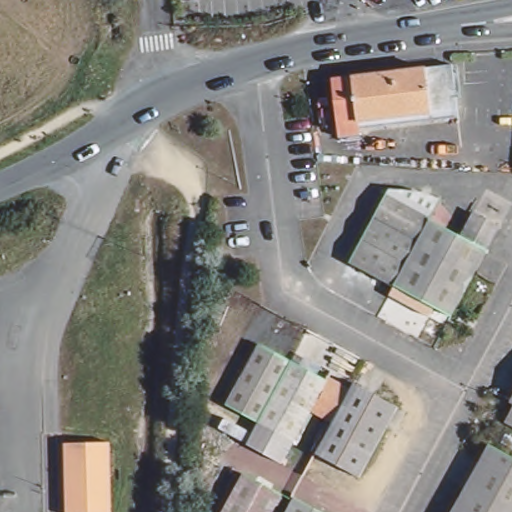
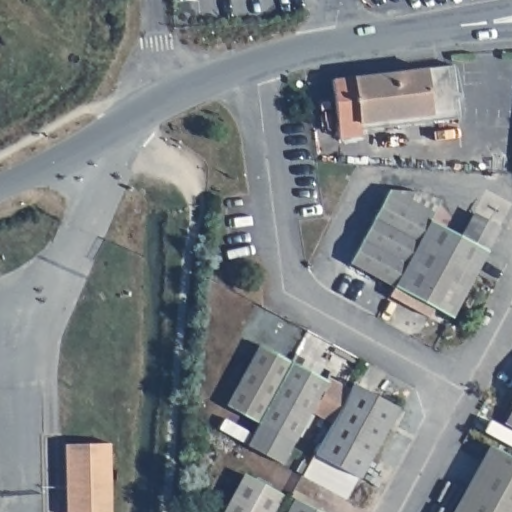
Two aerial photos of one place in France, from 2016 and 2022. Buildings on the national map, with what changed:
unchanged [(461,113),(418,120),(362,130),(364,141),(342,145),(339,126),(332,87),(452,66),(461,113)]
unchanged [(348,265),(373,220),(385,199),(429,222),(417,244),(392,289),(348,265)]
unchanged [(392,289),(417,244),(429,222),(460,239),(472,217),(498,231),(486,253),(450,320),(392,289)]
unchanged [(263,354),(295,370),(291,377),(263,429),(232,413),(263,354)]
unchanged [(345,414),(337,429),(315,417),(297,448),(263,429),(291,377),(295,370),(296,368),(330,386),(332,384),(354,396),(345,414)]
unchanged [(363,484),(320,459),(337,429),(345,414),(354,396),(357,389),(402,413),(363,484)]
unchanged [(512,402),(512,405),(511,404),(512,402)]
unchanged [(512,413),(512,427),(506,424),(512,413)]
unchanged [(512,454),(512,512),(451,512),(488,442),(512,454)]
unchanged [(112,512),(67,512),(64,448),(109,446),(112,512)]
unchanged [(244,473),(283,494),(273,512),(221,512),(244,473)]
unchanged [(293,496),(321,512),(286,512),(293,496)]

